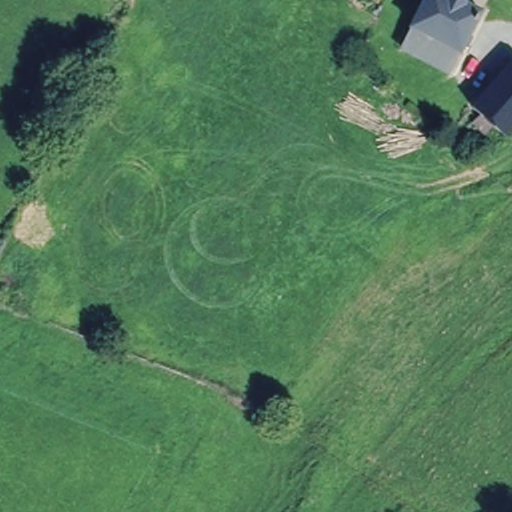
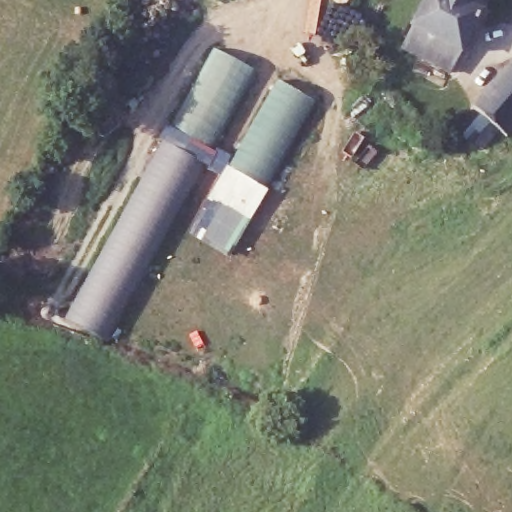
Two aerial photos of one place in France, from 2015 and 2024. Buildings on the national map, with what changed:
unchanged [(485,2),(463,40),(416,15),(425,0),(481,0),(485,2)]
unchanged [(463,40),(450,61),(405,35),(416,15),(463,40)]
new [(214,49),(255,72),(204,164),(184,152),(172,170),(160,156),(157,161),(152,158),(214,49)]
unchanged [(502,135),(470,104),(512,58),(512,125),(502,135)]
new [(276,79),(314,100),(267,188),(226,165),(276,79)]
new [(152,158),(157,161),(160,156),(172,170),(184,152),(204,164),(148,274),(107,343),(60,318),(152,158)]
new [(226,165),(267,188),(268,189),(225,255),(187,232),(226,165)]

